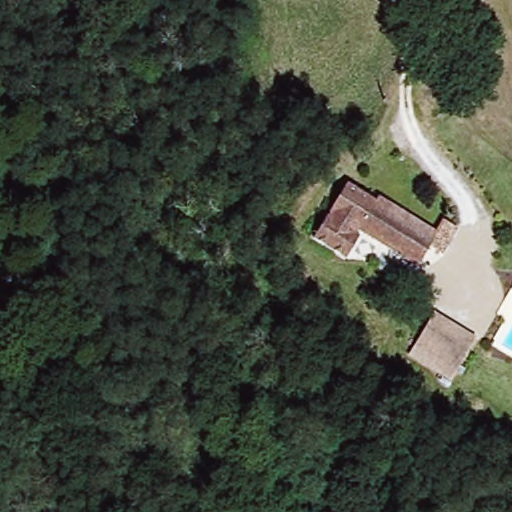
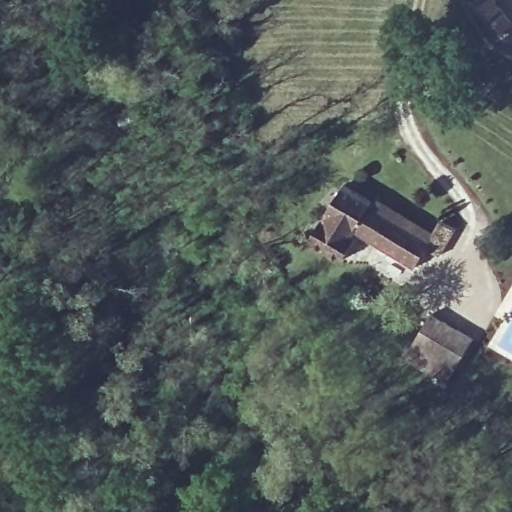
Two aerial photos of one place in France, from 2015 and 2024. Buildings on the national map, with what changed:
new [(496,0),(512,21),(512,30),(491,46),(466,13),(484,0),(496,0)]
unchanged [(440,259),(427,250),(416,269),(357,234),(353,240),(356,243),(343,264),(309,242),(345,188),(390,214),(396,215),(435,238),(445,224),(457,233),(440,259)]
unchanged [(459,369),(417,344),(436,314),(476,339),(459,369)]

